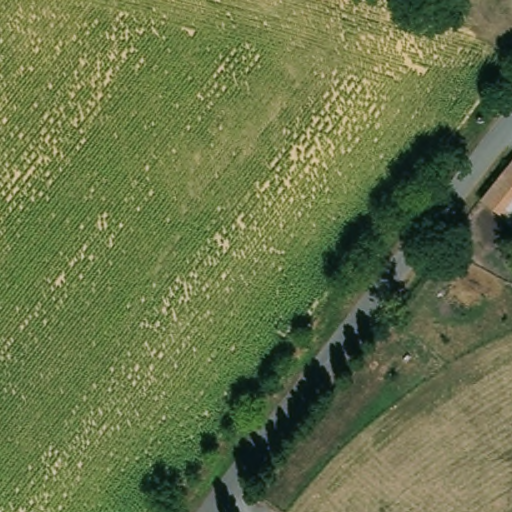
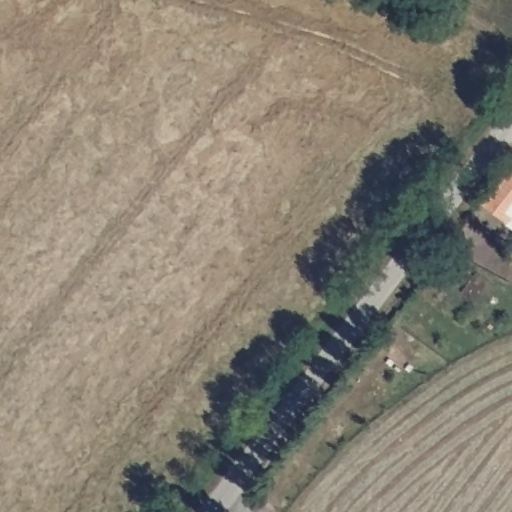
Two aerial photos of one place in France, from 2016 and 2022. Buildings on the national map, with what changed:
unchanged [(512,159),(512,197),(493,183),(512,159)]
unchanged [(512,224),(481,199),(493,183),(512,197),(512,224)]

